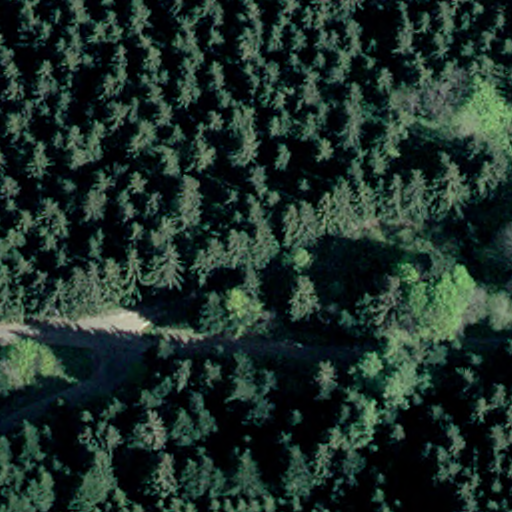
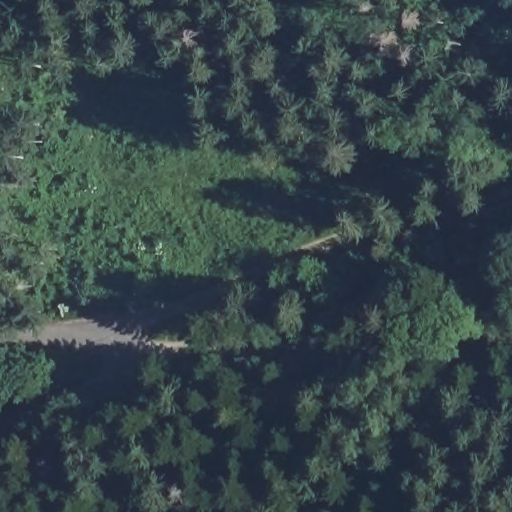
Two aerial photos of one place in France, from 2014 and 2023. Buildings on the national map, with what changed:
unchanged [(453,112),(453,146),(395,147),(395,113),(453,112)]

